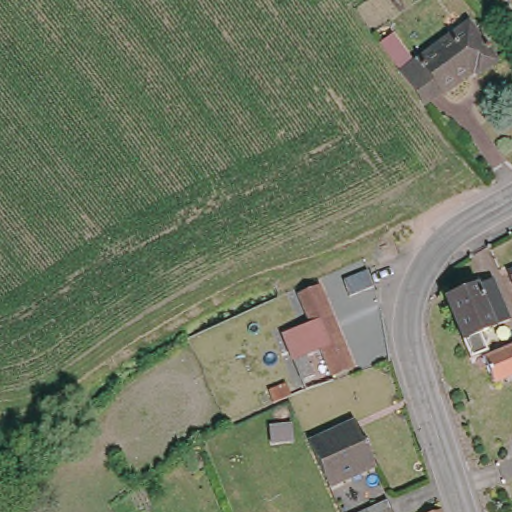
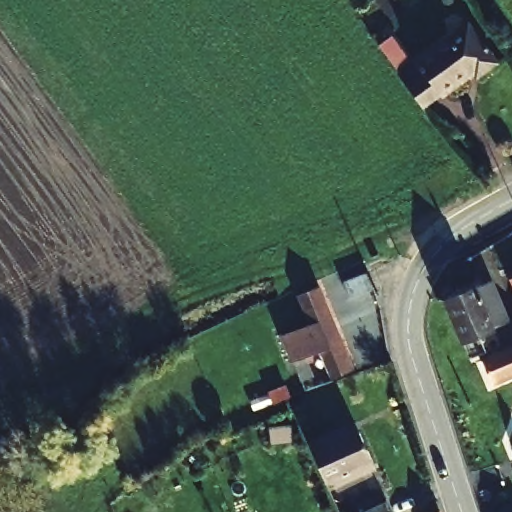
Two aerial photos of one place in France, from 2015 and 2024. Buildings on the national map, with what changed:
unchanged [(405,77),(383,46),(396,38),(417,69),(471,31),(497,68),(479,81),(476,78),(445,100),(443,97),(425,108),(405,77)]
unchanged [(512,266),(512,280),(507,269),(512,266)]
unchanged [(369,272),(376,288),(351,297),(345,282),(369,272)]
unchanged [(475,285),(494,327),(480,332),(487,349),(470,356),(445,298),(475,285)]
unchanged [(284,340),(312,328),(301,301),(319,293),(351,372),(333,379),(322,353),(306,359),(315,379),(310,381),(315,391),(306,394),(284,340)]
unchanged [(512,342),(512,372),(493,380),(482,354),(512,342)]
unchanged [(355,426),(375,470),(330,491),(330,490),(310,446),(355,426)]
unchanged [(385,508),(387,512),(375,512),(385,508)]
unchanged [(442,511),(442,512),(437,512),(442,511)]

